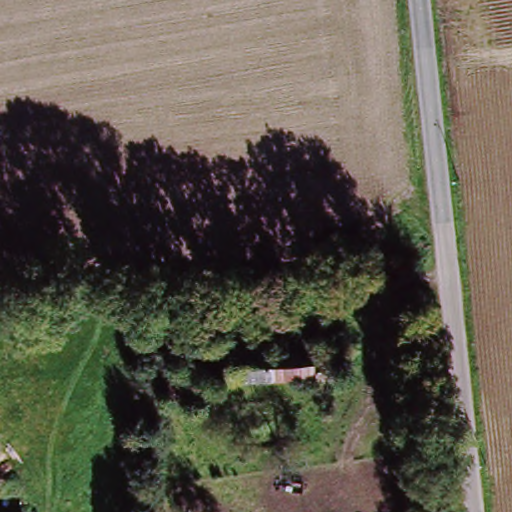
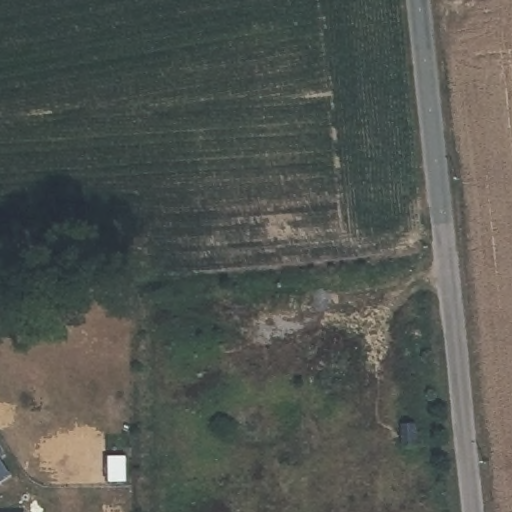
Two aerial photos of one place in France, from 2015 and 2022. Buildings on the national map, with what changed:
unchanged [(271,338),(272,350),(338,349),(340,382),(235,384),(235,338),(271,338)]
unchanged [(212,381),(212,401),(182,401),(182,382),(212,381)]
unchanged [(422,420),(427,454),(410,456),(406,423),(422,420)]

